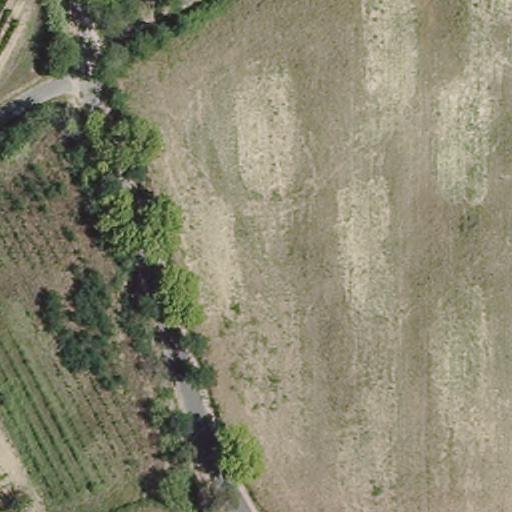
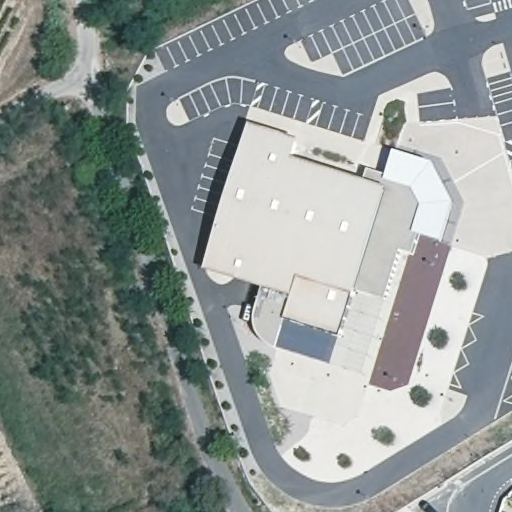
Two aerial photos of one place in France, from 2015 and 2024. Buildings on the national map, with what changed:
new [(276,348),(264,342),(257,332),(255,319),(258,304),(264,287),(206,270),(251,125),(299,139),(294,159),(365,181),(369,169),(389,174),(396,151),(436,164),(456,203),(444,241),(420,234),(414,255),(401,251),(386,301),(359,293),(342,335),(286,319),(280,335),(276,348)]
new [(286,319),(342,335),(359,293),(389,302),(394,304),(373,377),(283,350),(287,337),(280,335),(286,319)]

